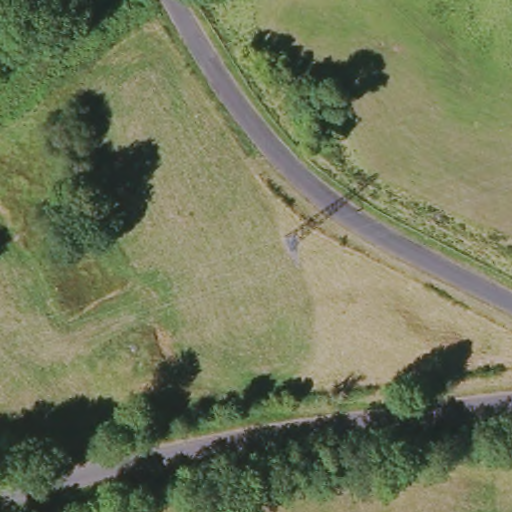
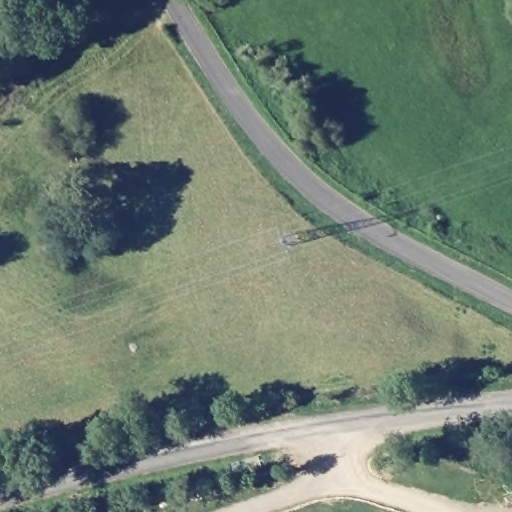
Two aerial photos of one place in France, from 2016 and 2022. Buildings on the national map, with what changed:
[]

